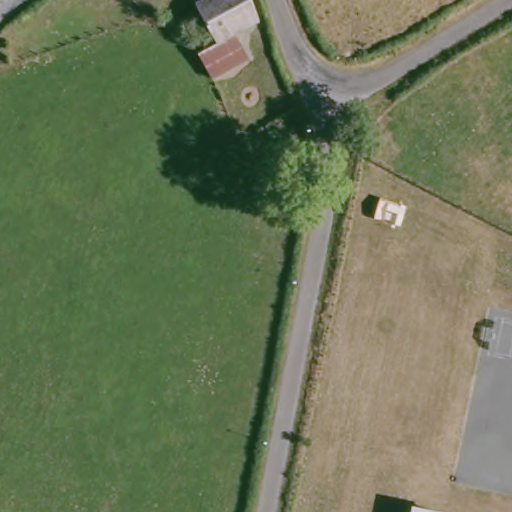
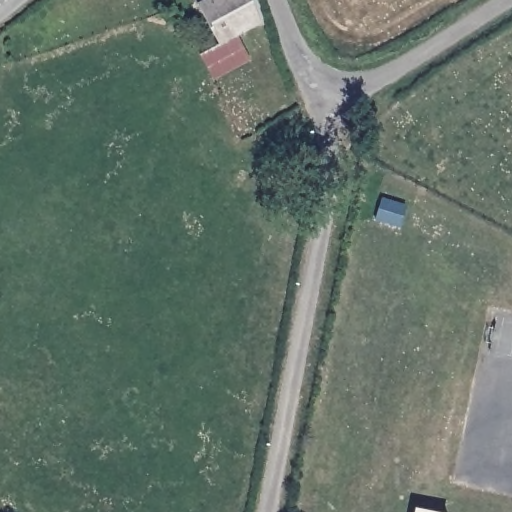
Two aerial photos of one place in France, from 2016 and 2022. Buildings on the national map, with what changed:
unchanged [(203,3),(207,0),(257,0),(265,19),(241,32),(224,41),(203,3)]
unchanged [(241,32),(254,56),(216,76),(204,53),(224,41),(241,32)]
unchanged [(456,511),(455,512),(423,512),(424,504),(456,511)]

